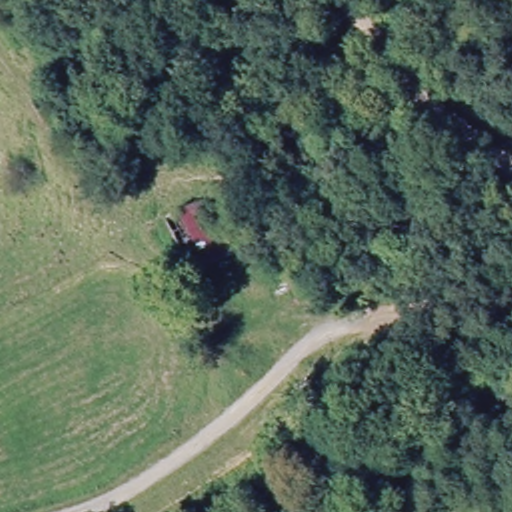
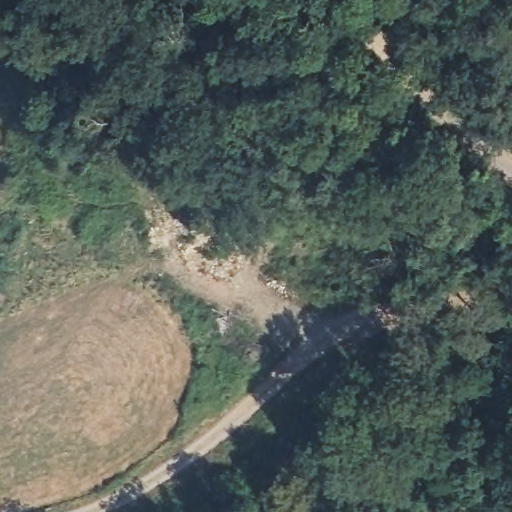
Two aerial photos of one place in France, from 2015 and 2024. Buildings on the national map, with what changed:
unchanged [(157,250),(149,245),(187,227),(199,221),(225,275),(214,280),(180,297),(157,250)]

